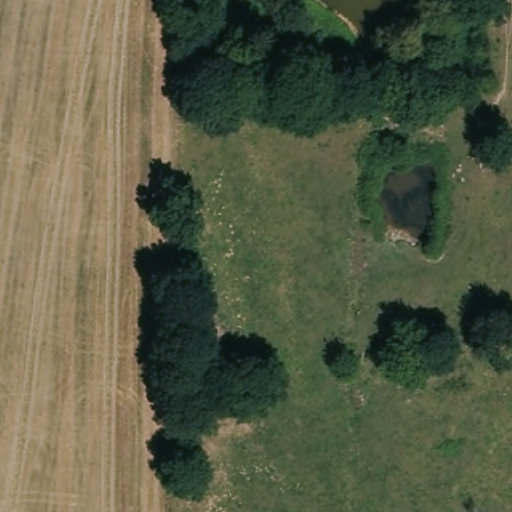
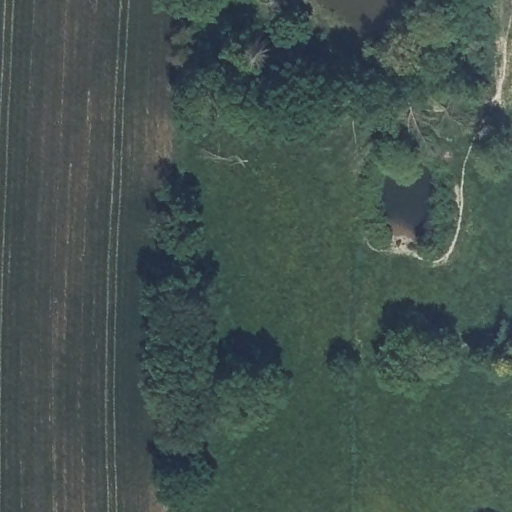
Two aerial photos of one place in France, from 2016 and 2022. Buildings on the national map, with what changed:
unchanged [(275,77),(275,45),(301,45),(301,77),(275,77)]

